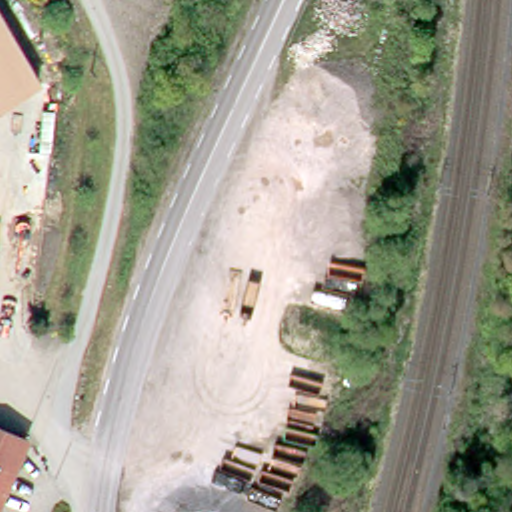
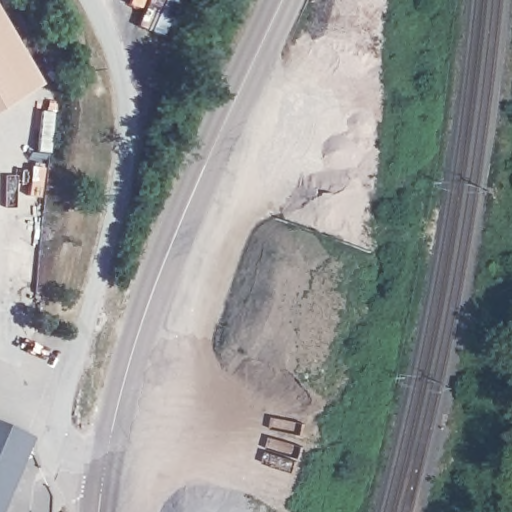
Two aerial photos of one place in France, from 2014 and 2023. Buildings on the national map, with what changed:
unchanged [(38,76),(0,100),(0,15),(38,76)]
unchanged [(22,437),(0,490),(0,428),(22,437)]

